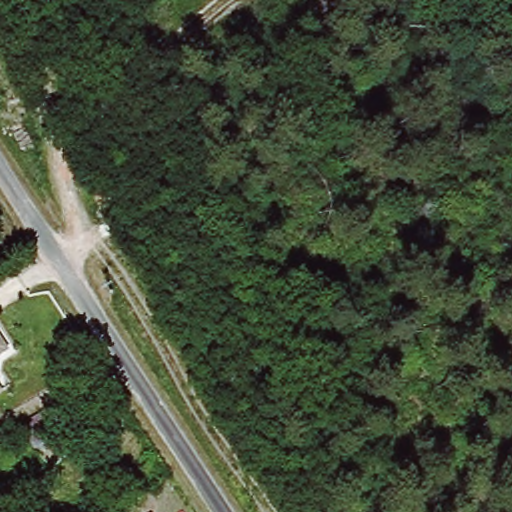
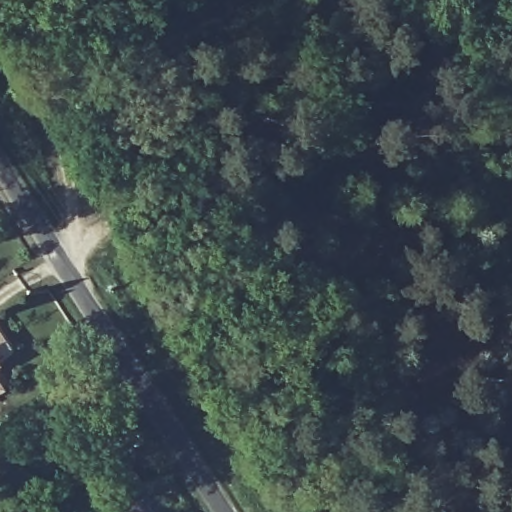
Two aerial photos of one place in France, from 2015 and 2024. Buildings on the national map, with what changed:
unchanged [(74,404),(89,426),(41,454),(26,433),(74,404)]
unchanged [(129,464),(141,484),(126,492),(116,472),(129,464)]

